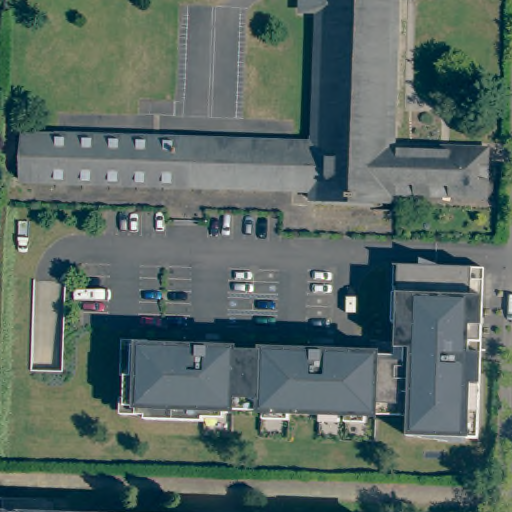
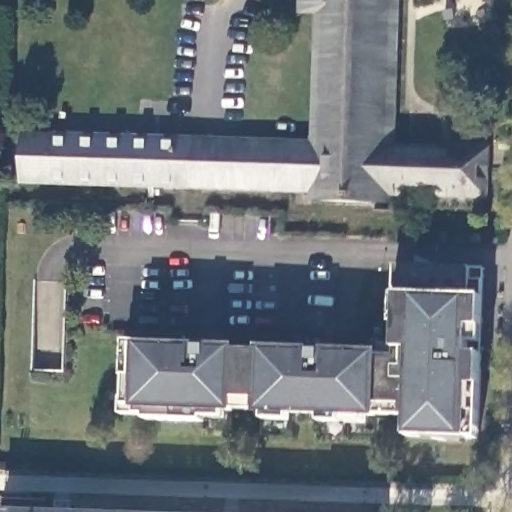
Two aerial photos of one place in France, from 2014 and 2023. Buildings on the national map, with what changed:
unchanged [(307,193),(18,182),(19,136),(308,146),(313,12),(296,11),(297,0),(391,0),(391,17),(393,18),(393,33),(391,33),(390,53),(392,53),(392,68),(390,68),(390,87),(392,88),(391,103),(389,103),(388,123),(391,123),(390,140),(387,140),(387,148),(482,151),(480,198),(392,194),(392,205),(307,202),(307,193)]
unchanged [(452,437),(407,436),(407,416),(402,415),(375,415),(257,410),(229,409),(201,408),(201,421),(142,419),(143,401),(122,401),(122,395),(123,372),(129,372),(131,342),(195,344),(196,336),(217,337),(216,345),(310,350),(310,341),(331,342),(330,350),(377,353),(395,354),(396,345),(396,323),(392,323),(394,265),(484,268),(481,361),(480,385),(477,438),(452,437)]
unchanged [(1,499),(55,501),(55,512),(0,512),(1,499)]

